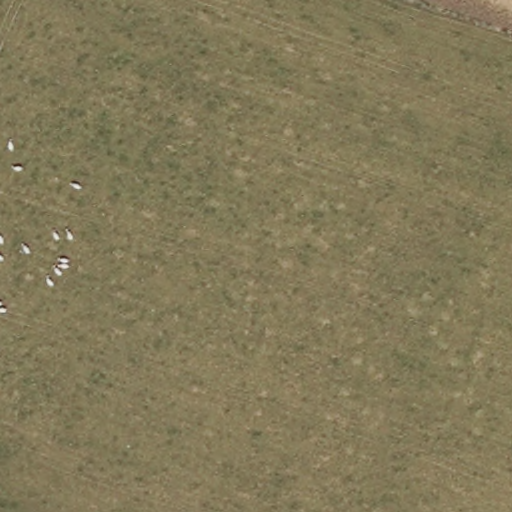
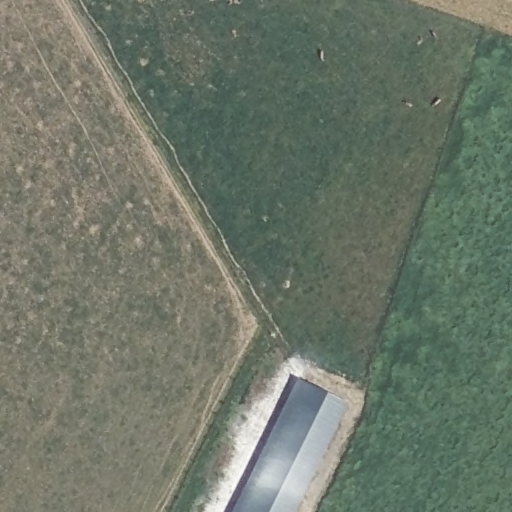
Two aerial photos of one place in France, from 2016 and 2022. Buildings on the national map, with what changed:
new [(346,405),(294,512),(230,512),(296,380),(346,405)]

